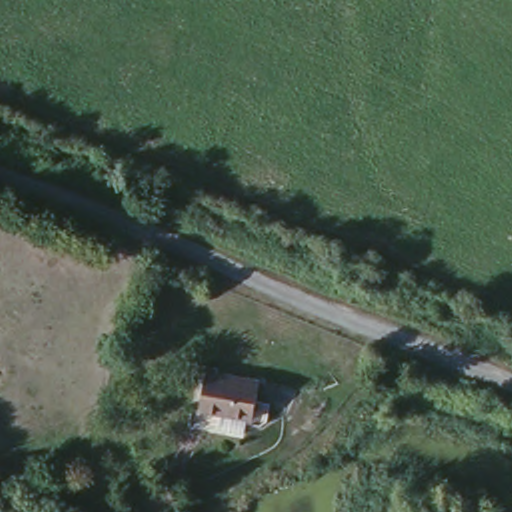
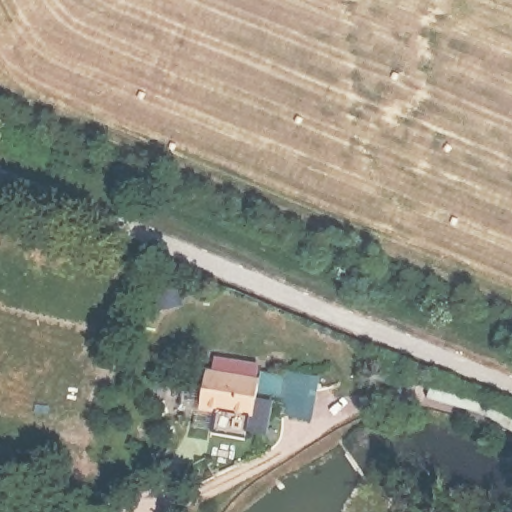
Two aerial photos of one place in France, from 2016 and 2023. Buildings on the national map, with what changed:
unchanged [(215,422),(217,411),(200,408),(206,370),(259,380),(251,418),(237,415),(234,426),(215,422)]

